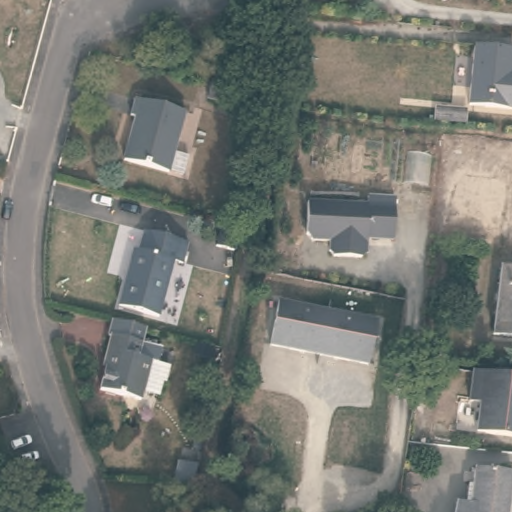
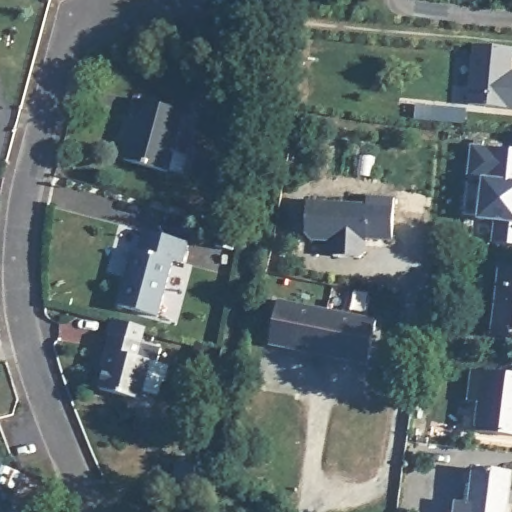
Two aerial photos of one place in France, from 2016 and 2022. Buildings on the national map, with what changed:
unchanged [(512,48),(512,109),(469,104),(475,44),(482,45),(512,48)]
unchanged [(233,104),(207,98),(212,81),(237,89),(233,104)]
unchanged [(136,117),(131,115),(135,99),(185,111),(174,151),(188,156),(183,174),(170,169),(169,172),(124,159),(136,117)]
new [(512,150),(512,244),(495,242),(497,220),(481,218),(487,179),(472,177),(477,145),(512,150)]
unchanged [(367,204),(367,196),(395,198),(392,243),(367,242),(367,259),(332,258),(332,242),(307,240),(308,201),(367,204)]
unchanged [(134,249),(139,250),(144,229),(189,242),(182,263),(174,260),(159,316),(119,305),(134,249)]
unchanged [(512,270),(512,337),(492,335),(500,269),(512,270)]
unchanged [(376,320),(366,363),(267,346),(278,300),(376,320)]
unchanged [(140,328),(136,342),(157,348),(153,362),(162,364),(164,369),(162,379),(157,382),(154,394),(151,395),(138,392),(136,399),(94,388),(104,351),(101,350),(105,335),(102,335),(107,319),(140,328)]
unchanged [(437,367),(432,399),(417,397),(420,365),(437,367)]
unchanged [(512,436),(477,432),(480,403),(470,402),(473,372),(511,376),(512,376),(512,436)]
unchanged [(192,485),(175,484),(180,461),(197,464),(196,472),(192,485)]
unchanged [(476,503),(480,469),(512,473),(512,512),(461,512),(462,501),(476,503)]
unchanged [(15,501),(26,474),(54,487),(43,512),(41,512),(15,501)]

